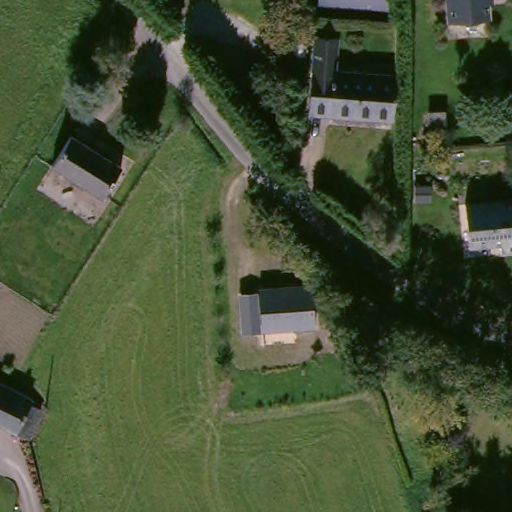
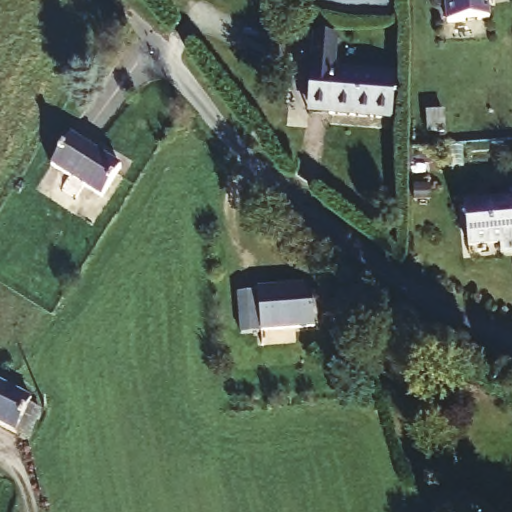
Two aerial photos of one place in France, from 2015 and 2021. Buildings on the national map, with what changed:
unchanged [(393,20),(319,18),(320,0),(393,0),(393,20)]
unchanged [(491,18),(450,22),(448,0),(489,0),(491,18)]
unchanged [(308,69),(332,70),(332,78),(390,80),(390,121),(332,120),(331,107),(308,105),(308,69)]
unchanged [(442,137),(427,137),(426,117),(442,117),(442,137)]
unchanged [(71,139),(118,170),(100,198),(54,167),(71,139)]
unchanged [(512,255),(500,255),(499,247),(464,250),(461,206),(512,201),(512,255)]
unchanged [(306,279),(310,320),(258,325),(254,285),(306,279)]
unchanged [(11,388),(31,400),(29,404),(43,413),(27,441),(0,426),(0,382),(11,388)]

